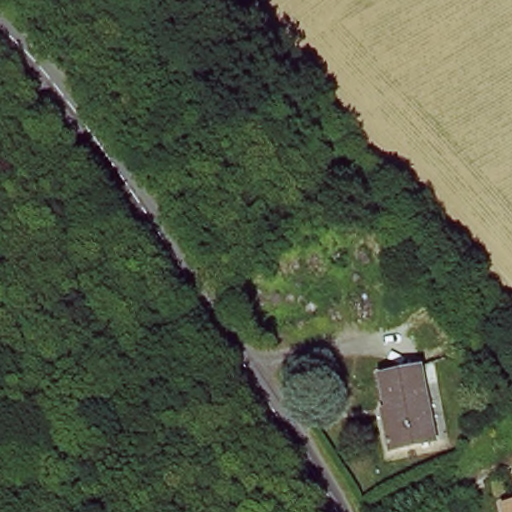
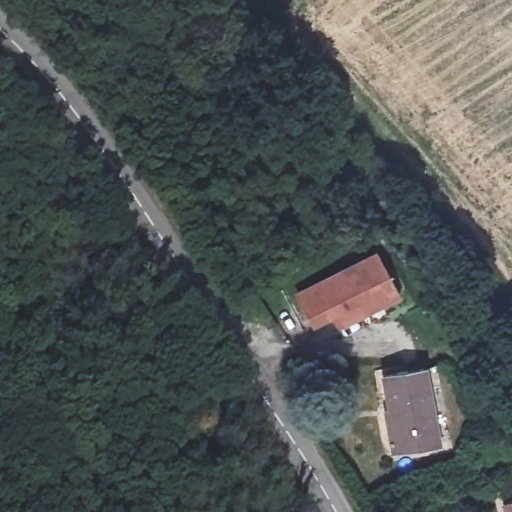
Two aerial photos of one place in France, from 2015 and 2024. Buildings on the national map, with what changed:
demolished [(390,233),(408,260),(390,272),(371,245),(390,233)]
new [(402,298),(340,330),(334,320),(314,328),(295,293),(378,251),(402,298)]
unchanged [(436,453),(389,461),(382,425),(389,425),(381,386),(423,380),(436,453)]
unchanged [(512,512),(510,512),(512,511),(512,512)]

